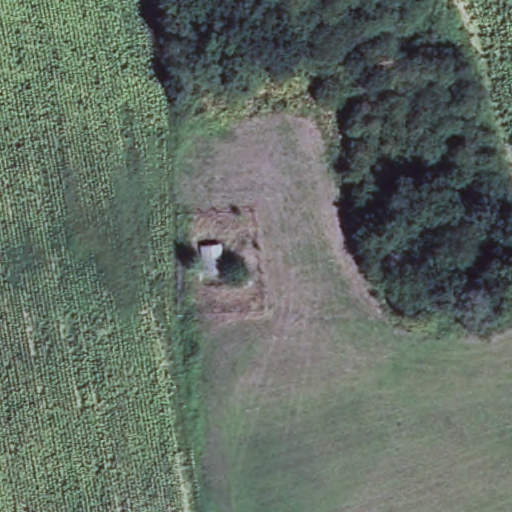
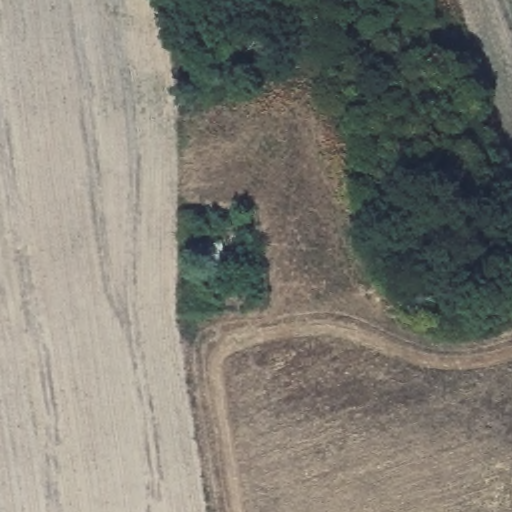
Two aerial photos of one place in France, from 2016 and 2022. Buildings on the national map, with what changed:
unchanged [(205,255),(222,253),(224,280),(207,282),(205,255)]

